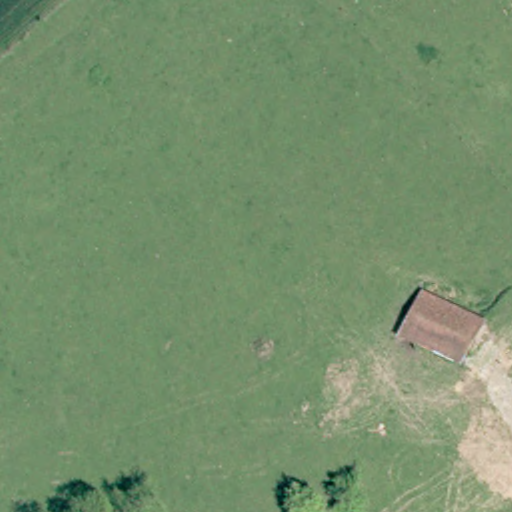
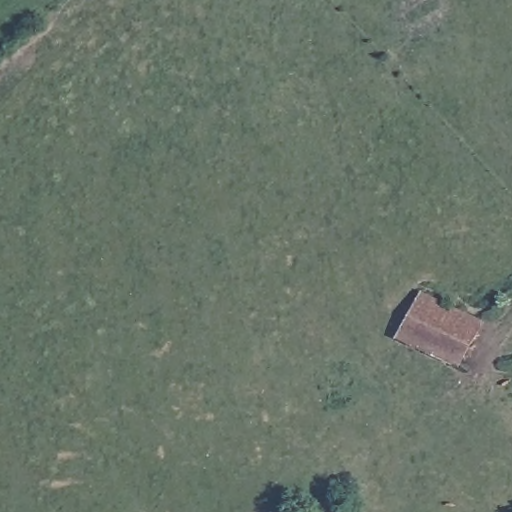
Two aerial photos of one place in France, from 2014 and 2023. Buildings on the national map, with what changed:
unchanged [(457,362),(406,333),(425,293),(430,284),(455,298),(449,307),(478,324),(457,362)]

